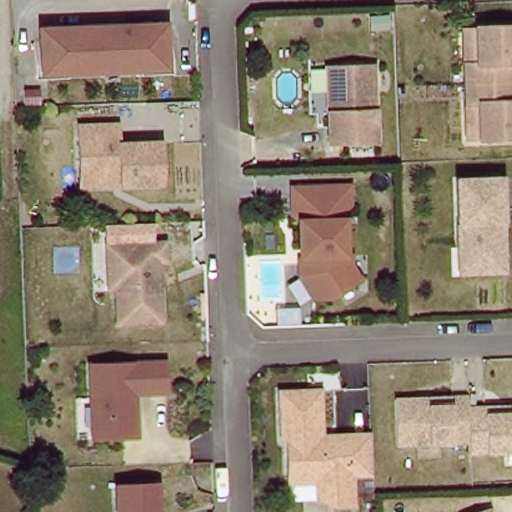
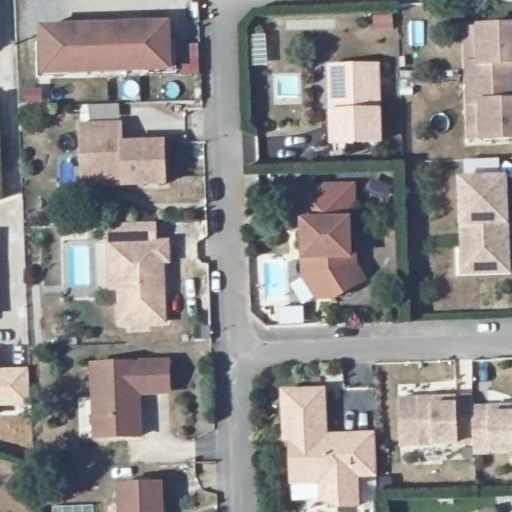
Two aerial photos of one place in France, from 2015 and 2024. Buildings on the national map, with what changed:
unchanged [(168,24),(170,69),(45,73),(43,28),(168,24)]
unchanged [(467,110),(465,70),(464,34),(476,34),(512,32),(512,144),(481,145),(468,146),(467,110)]
unchanged [(379,148),(331,150),(329,117),(328,73),(337,72),(376,71),(379,148)]
unchanged [(120,127),(120,147),(163,146),(164,186),(123,187),(122,182),(115,183),(110,188),(94,189),(94,170),(81,170),(80,129),(120,127)]
unchanged [(462,280),(461,272),(459,186),(504,185),(506,265),(507,278),(462,280)]
unchanged [(309,228),(303,222),(303,194),(359,191),(361,211),(354,217),(356,262),(349,262),(349,273),(361,292),(341,305),(324,305),(311,282),(311,270),(310,254),(309,228)]
unchanged [(167,265),(159,265),(161,325),(120,326),(119,290),(109,290),(108,248),(116,248),(166,246),(167,265)]
unchanged [(165,361),(166,390),(135,391),(136,433),(93,435),(91,363),(165,361)]
new [(30,408),(0,408),(0,367),(28,367),(30,408)]
unchanged [(294,478),(293,442),(288,442),(286,395),(326,393),(327,439),(333,442),(339,442),(339,439),(377,437),(379,477),(358,478),(359,508),(339,510),(339,502),(323,502),(323,485),(294,485),(294,478)]
unchanged [(475,405),(477,445),(469,445),(404,448),(402,402),(422,401),(458,400),(475,400),(475,405)]
unchanged [(477,445),(475,405),(512,405),(512,456),(469,456),(469,445),(477,445)]
unchanged [(161,486),(162,512),(120,512),(119,487),(161,486)]

